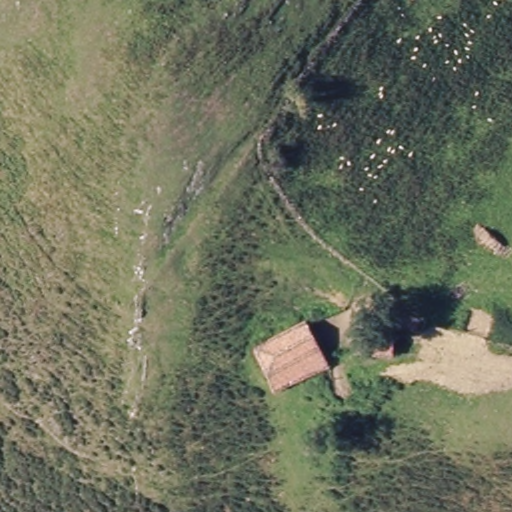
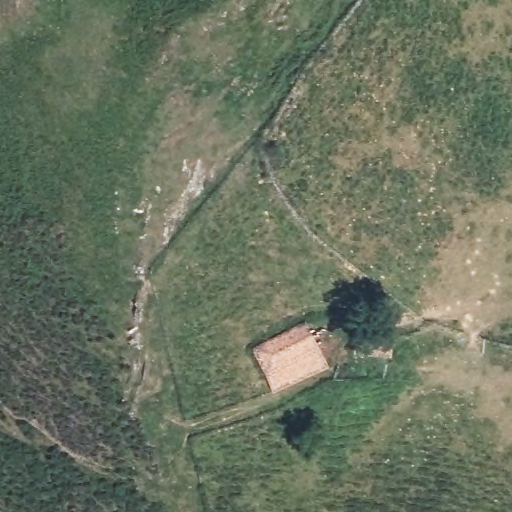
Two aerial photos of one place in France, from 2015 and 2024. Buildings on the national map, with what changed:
unchanged [(296,317),(325,358),(274,394),(249,350),(296,317)]
unchanged [(349,326),(388,328),(384,358),(348,355),(349,326)]

